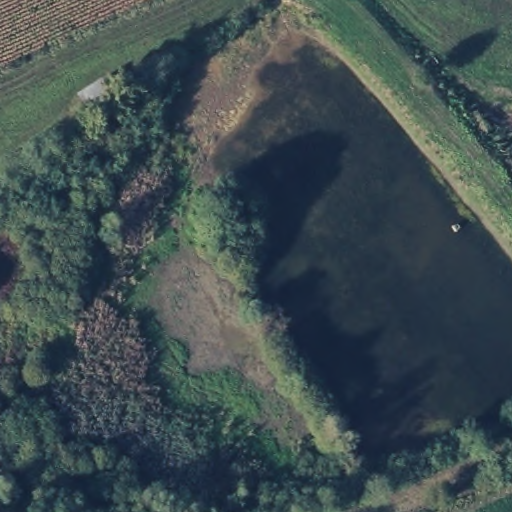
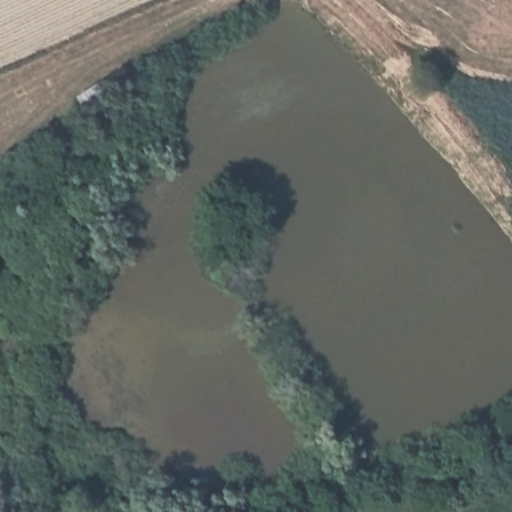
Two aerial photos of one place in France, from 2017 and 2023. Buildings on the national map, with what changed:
unchanged [(107,102),(86,112),(77,96),(98,86),(107,102)]

